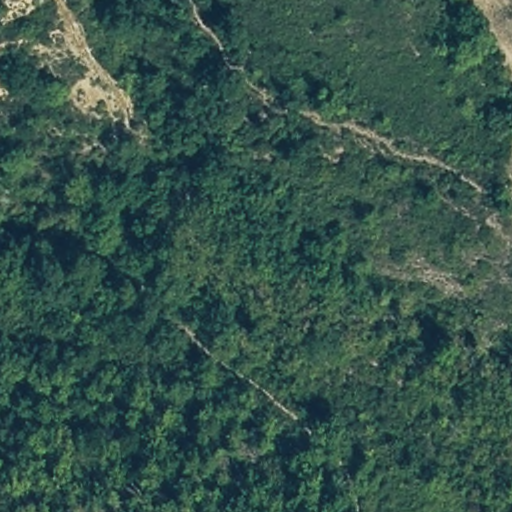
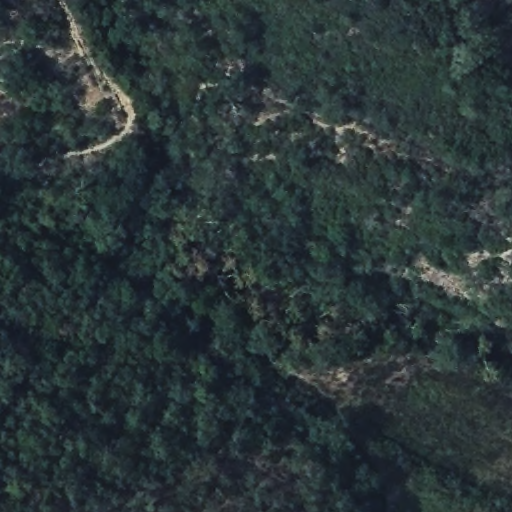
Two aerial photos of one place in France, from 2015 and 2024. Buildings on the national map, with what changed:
[]

